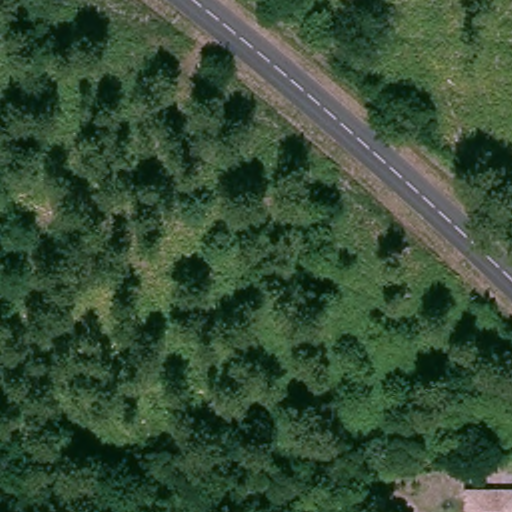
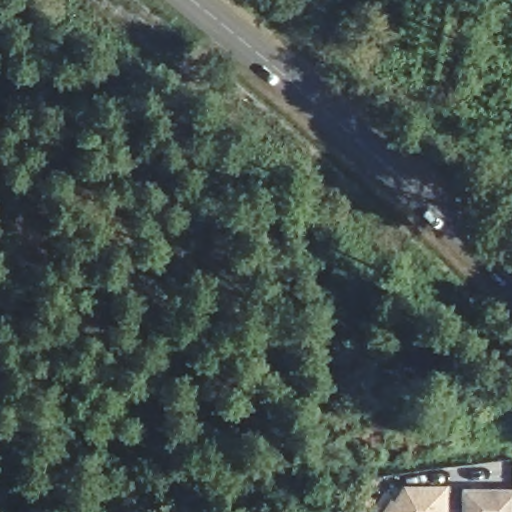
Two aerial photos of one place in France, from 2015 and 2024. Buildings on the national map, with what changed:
new [(385,512),(393,499),(397,501),(406,486),(446,487),(448,512),(385,512)]
unchanged [(512,494),(512,512),(465,512),(464,497),(512,494)]

